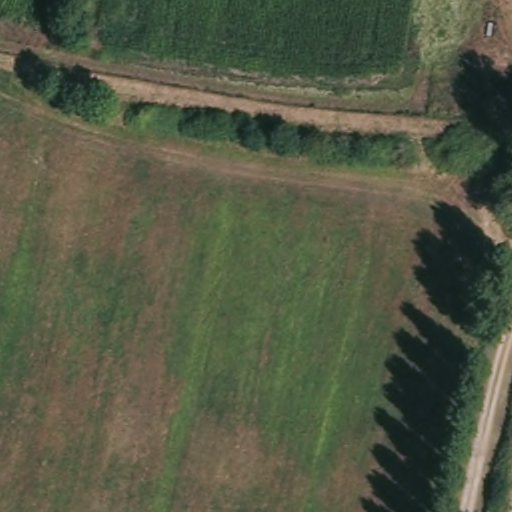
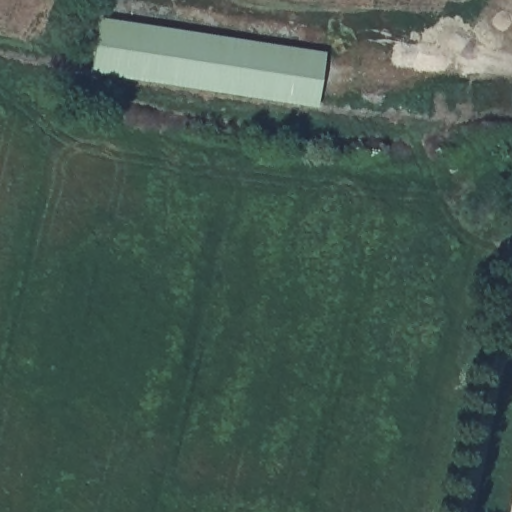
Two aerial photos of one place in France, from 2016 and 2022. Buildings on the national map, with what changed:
new [(124,19),(370,68),(360,123),(112,75),(124,19)]

